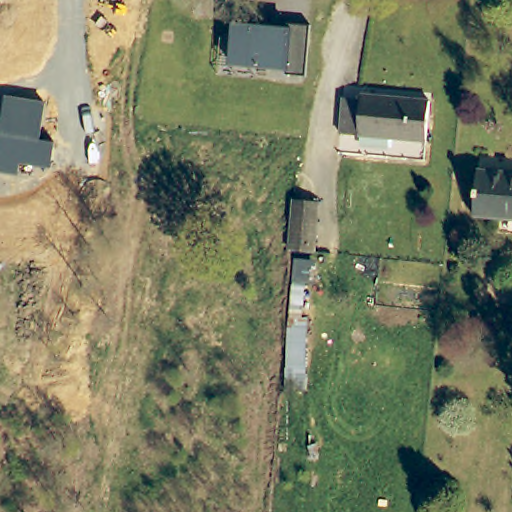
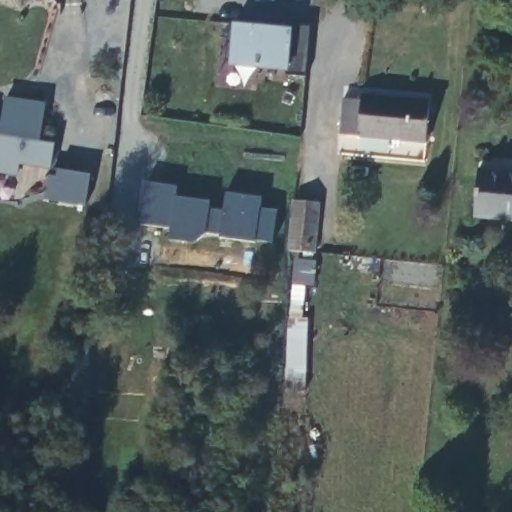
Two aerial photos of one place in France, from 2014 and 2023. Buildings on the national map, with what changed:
unchanged [(287,75),(288,71),(230,65),(234,24),(290,30),(291,24),(310,26),(305,76),(287,75)]
unchanged [(425,140),(341,131),(345,95),(362,98),(363,91),(430,99),(425,140)]
unchanged [(20,164),(18,175),(0,173),(0,121),(4,121),(8,96),(46,103),(40,140),(55,143),(51,168),(20,164)]
unchanged [(475,214),(479,168),(512,171),(512,218),(475,214)]
new [(86,205),(45,199),(49,174),(55,175),(56,169),(91,174),(86,205)]
new [(176,186),(175,197),(210,202),(209,209),(223,211),(220,234),(206,232),(205,240),(200,239),(200,243),(169,239),(170,227),(141,223),(146,182),(176,186)]
new [(275,240),(220,234),(223,211),(225,191),(262,195),(261,206),(278,209),(275,240)]
unchanged [(320,199),(316,249),(288,246),(293,197),(320,199)]
unchanged [(316,262),(313,284),(307,284),(303,317),(310,318),(305,392),(286,391),(290,322),(295,259),(316,262)]

